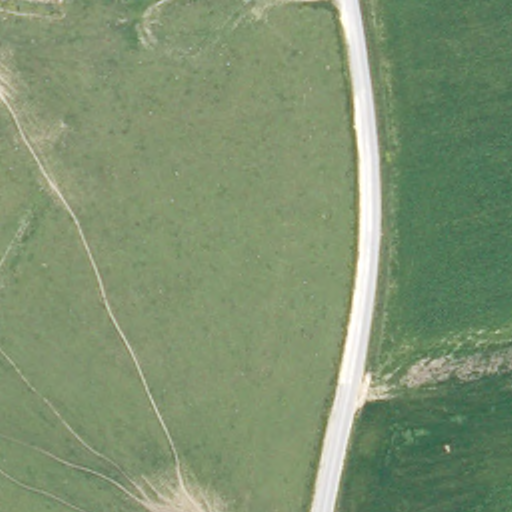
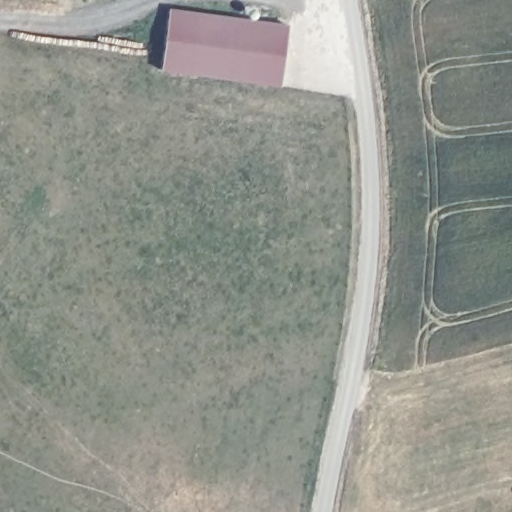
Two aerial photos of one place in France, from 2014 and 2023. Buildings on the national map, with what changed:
new [(287,22),(279,85),(160,69),(168,7),(287,22)]

